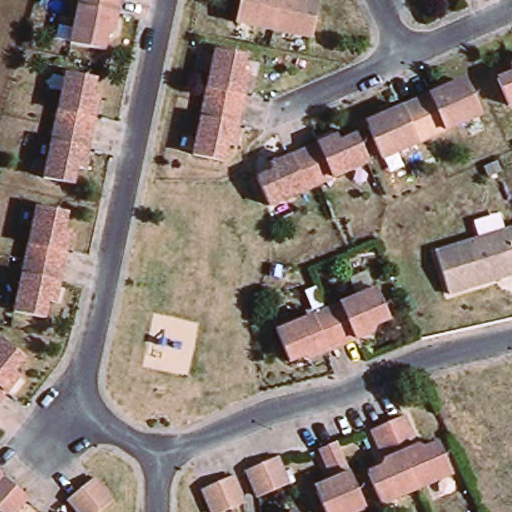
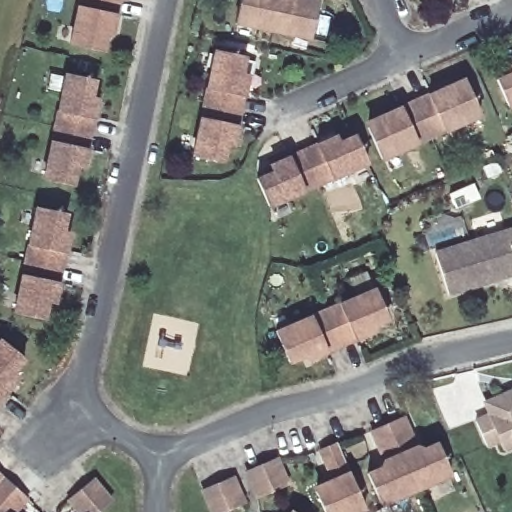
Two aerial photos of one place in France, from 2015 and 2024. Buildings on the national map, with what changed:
unchanged [(118,38),(112,41),(109,56),(76,50),(87,0),(126,0),(118,38)]
unchanged [(303,2),(306,7),(322,10),(315,44),(278,36),(241,28),(247,0),(304,0),(303,2)]
unchanged [(238,151),(232,150),(228,167),(199,161),(221,56),(250,62),(246,79),(253,81),(238,151)]
unchanged [(84,175),(78,174),(74,191),(45,185),(67,80),(96,86),(92,103),(99,105),(84,175)]
unchanged [(512,82),(512,107),(503,86),(512,82)]
unchanged [(386,164),(373,133),(387,127),(389,120),(451,94),(457,96),(471,90),(485,121),(386,164)]
unchanged [(274,210),(263,184),(279,177),(276,170),(342,142),(344,148),(361,141),(373,169),(274,210)]
unchanged [(511,168),(497,173),(492,163),(507,157),(511,168)]
unchanged [(56,304),(50,303),(46,320),(16,314),(38,209),(68,215),(64,232),(71,234),(56,304)]
unchanged [(447,295),(434,253),(512,230),(512,276),(492,282),(447,295)]
unchanged [(380,327),(378,333),(316,360),(310,357),(295,363),(282,332),(381,290),(395,321),(380,327)]
unchanged [(0,416),(0,356),(8,346),(31,366),(20,379),(26,384),(0,416)]
new [(484,403),(512,391),(512,444),(504,448),(500,439),(485,446),(475,421),(489,414),(484,403)]
unchanged [(419,453),(425,455),(439,450),(452,481),(383,510),(369,479),(383,473),(386,467),(373,437),(389,430),(406,423),(419,453)]
unchanged [(324,512),(317,497),(332,491),(334,485),(321,456),(338,448),(366,512),(324,512)]
unchanged [(289,490),(259,503),(248,477),(278,464),(289,490)]
unchanged [(24,512),(0,512),(0,479),(29,506),(24,512)]
unchanged [(238,512),(211,512),(204,496),(235,483),(246,509),(238,512)]
unchanged [(96,486),(114,507),(108,512),(75,512),(71,507),(96,486)]

